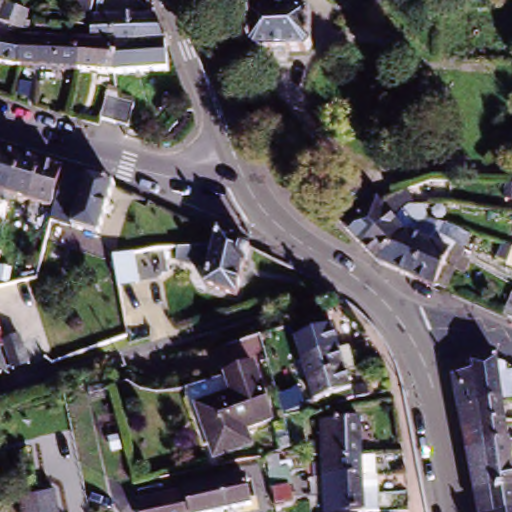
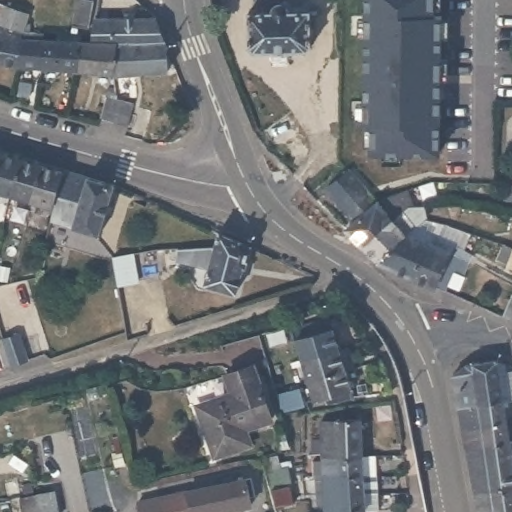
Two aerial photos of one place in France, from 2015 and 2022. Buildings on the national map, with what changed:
demolished [(335,1),(336,0),(358,0),(357,4),(335,1)]
new [(435,0),(435,15),(442,15),(439,153),(371,151),(372,124),(364,124),(367,0),(435,0)]
unchanged [(90,34),(80,33),(85,1),(95,3),(90,34)]
unchanged [(269,57),(268,49),(250,51),(248,52),(242,47),(245,44),(245,12),(265,11),(267,7),(270,4),(272,2),(277,2),(281,5),(282,8),(282,11),(305,10),(305,43),(309,46),(303,51),(300,48),(282,49),(282,56),(269,57)]
unchanged [(0,68),(5,32),(0,30),(0,25),(0,12),(5,14),(29,23),(25,32),(29,34),(27,40),(39,42),(40,52),(78,51),(91,50),(92,40),(95,24),(156,23),(166,48),(167,75),(115,78),(77,76),(40,74),(20,72),(0,68)]
unchanged [(0,68),(0,30),(5,32),(0,68)]
unchanged [(100,117),(110,90),(116,92),(115,97),(117,97),(130,101),(124,124),(112,121),(100,117)]
unchanged [(11,200),(0,198),(0,158),(2,158),(22,163),(44,170),(62,175),(52,212),(33,207),(11,200)]
unchanged [(52,227),(65,176),(66,174),(89,181),(73,233),(52,227)]
unchanged [(435,294),(435,296),(412,286),(378,270),(377,270),(362,254),(345,238),(358,226),(329,196),(350,176),(380,205),(375,210),(391,228),(392,228),(402,218),(415,233),(407,242),(427,251),(432,241),(449,250),(462,257),(445,298),(435,294)]
unchanged [(100,241),(73,233),(89,181),(115,190),(100,241)]
unchanged [(502,198),(503,183),(512,184),(512,198),(502,198)]
unchanged [(203,287),(208,272),(190,268),(175,265),(175,252),(177,252),(195,251),(197,251),(215,250),(220,237),(250,251),(235,298),(203,287)]
unchanged [(507,261),(512,247),(512,263),(507,261)]
unchanged [(117,281),(115,262),(135,258),(137,282),(117,287),(117,281)]
unchanged [(505,313),(510,303),(512,298),(512,317),(505,313)]
unchanged [(299,349),(295,338),(327,328),(330,339),(337,337),(344,357),(353,354),(359,374),(350,377),(355,396),(324,406),(325,413),(319,414),(311,389),(305,369),(299,349)]
unchanged [(23,359),(5,365),(0,367),(0,338),(15,333),(23,359)]
unchanged [(480,497),(477,477),(472,454),(468,434),(465,415),(464,413),(460,395),(458,380),(472,369),(503,365),(506,386),(509,403),(509,406),(512,425),(512,512),(484,512),(480,497)]
unchanged [(201,410),(237,397),(232,381),(259,371),(275,424),(249,435),(253,448),(217,461),(201,410)]
unchanged [(329,480),(319,480),(319,467),(329,466),(329,463),(328,459),(319,459),(318,444),(327,444),(327,426),(340,425),(366,423),(367,442),(378,441),(379,459),(381,458),(382,477),(369,478),(370,496),(370,512),(330,512),(330,499),(322,499),(322,485),(329,480)]
unchanged [(275,498),(272,488),(269,472),(265,458),(275,455),(279,469),(280,469),(285,468),(289,485),(291,494),(293,504),(277,508),(275,498)]
unchanged [(140,511),(139,505),(220,485),(222,484),(235,482),(245,479),(252,506),(241,508),(230,512),(141,512),(140,511)]
unchanged [(20,501),(37,499),(54,496),(57,512),(23,512),(20,501)]

